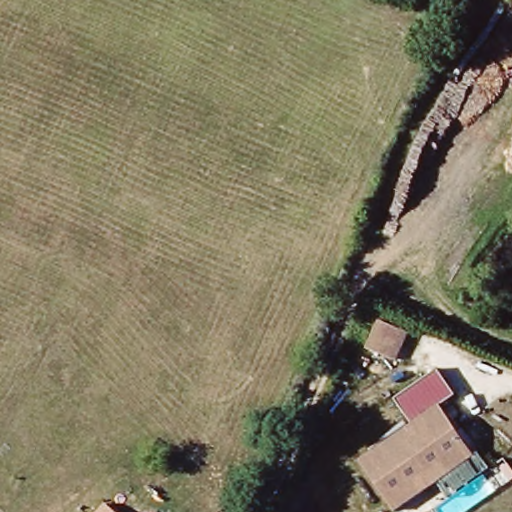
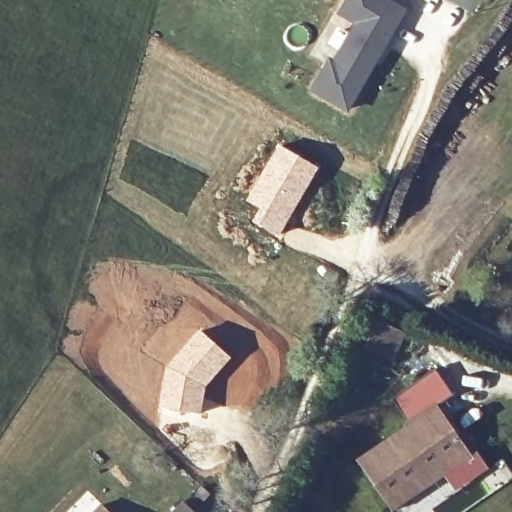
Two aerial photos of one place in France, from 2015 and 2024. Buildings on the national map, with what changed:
new [(310,93),(327,62),(332,65),(355,26),(337,16),(347,0),(380,0),(402,13),(376,58),(371,66),(345,112),(310,93)]
new [(278,143),(319,166),(278,236),(252,220),(258,209),(245,201),(278,143)]
unchanged [(401,330),(390,358),(362,347),(372,319),(401,330)]
new [(166,367),(200,328),(231,357),(206,386),(200,414),(159,408),(166,367)]
unchanged [(392,397),(436,367),(453,392),(435,403),(410,421),(392,397)]
unchanged [(469,455),(390,509),(355,459),(435,403),(469,455)]
new [(180,505),(187,512),(173,512),(180,505)]
unchanged [(109,512),(95,512),(102,506),(109,512)]

